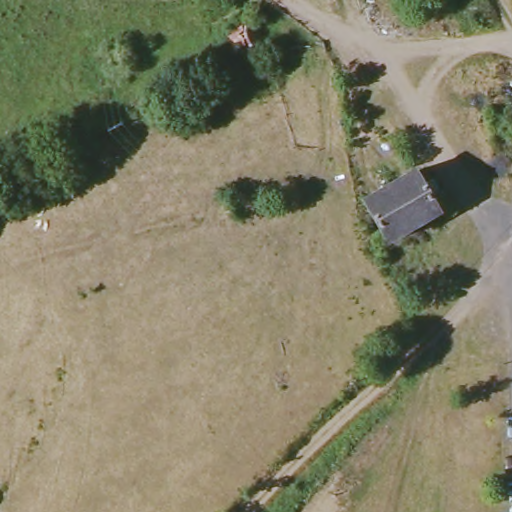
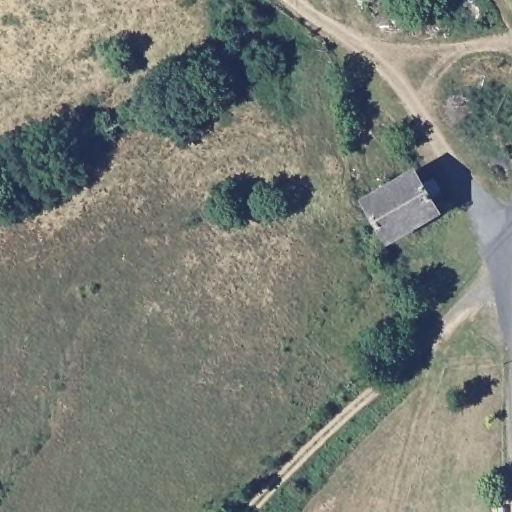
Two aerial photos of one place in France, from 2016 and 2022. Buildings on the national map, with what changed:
unchanged [(417,175),(440,216),(390,243),(367,202),(417,175)]

